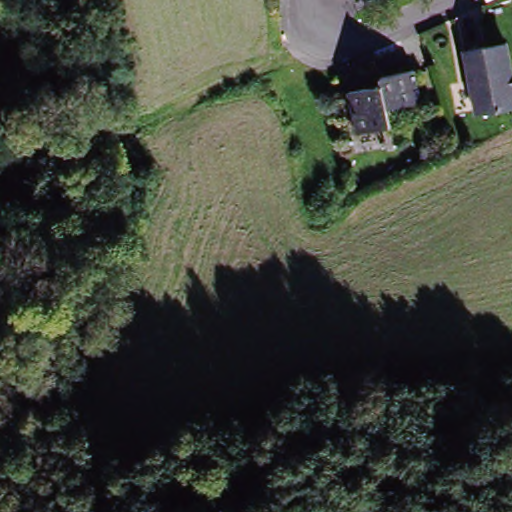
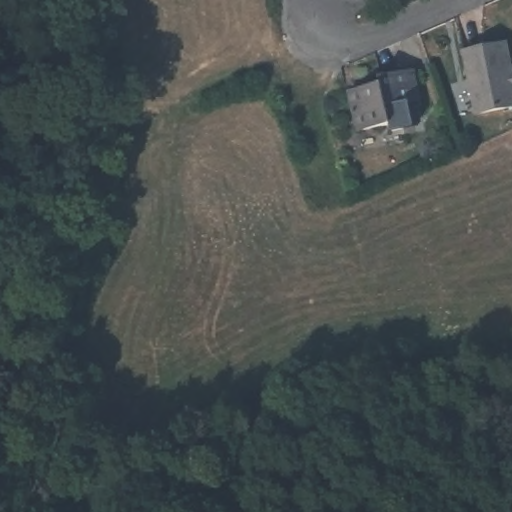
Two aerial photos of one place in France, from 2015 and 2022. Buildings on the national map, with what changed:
unchanged [(471,53),(512,46),(512,111),(481,116),(471,53)]
unchanged [(390,131),(360,140),(347,86),(376,82),(382,78),(408,72),(417,125),(390,131)]

